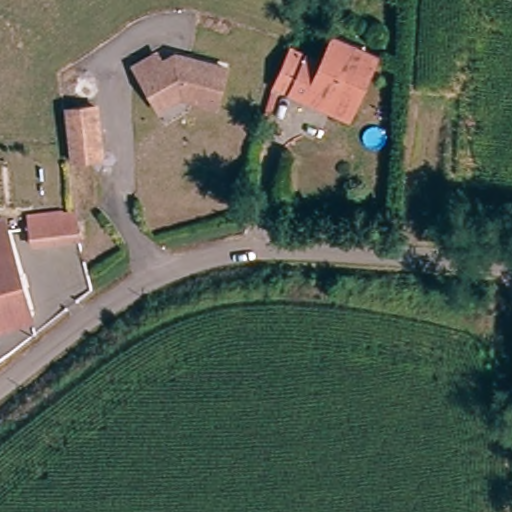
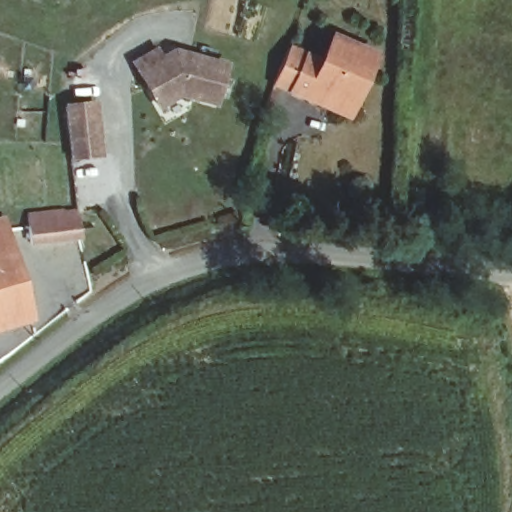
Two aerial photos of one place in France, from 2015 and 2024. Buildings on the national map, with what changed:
unchanged [(276,95),(268,119),(258,116),(270,84),(284,47),(290,49),(317,60),(327,32),(333,35),(371,51),(362,74),(347,114),(310,100),(304,97),(275,86),(272,93),(276,95)]
unchanged [(224,55),(217,95),(177,90),(160,101),(139,66),(135,59),(150,49),(154,57),(171,47),(224,55)]
unchanged [(69,102),(99,102),(99,108),(97,155),(68,154),(69,127),(69,102)]
unchanged [(25,237),(22,209),(72,205),(75,234),(25,237)]
unchanged [(0,220),(2,220),(30,317),(0,325),(0,220)]

